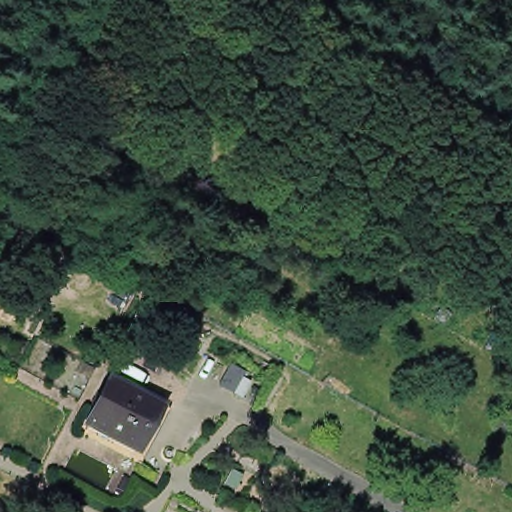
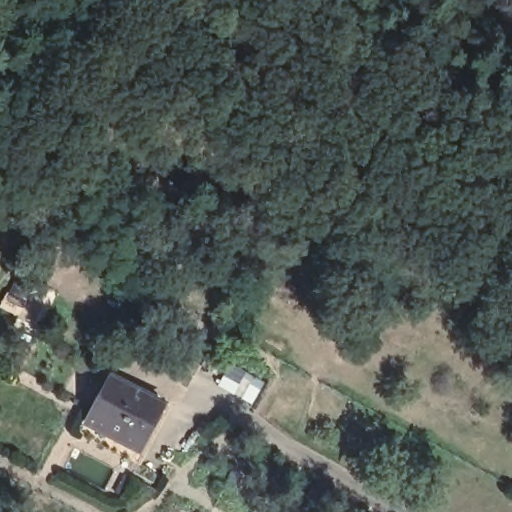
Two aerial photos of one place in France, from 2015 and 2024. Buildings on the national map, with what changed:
unchanged [(159,409),(133,458),(80,431),(106,381),(159,409)]

